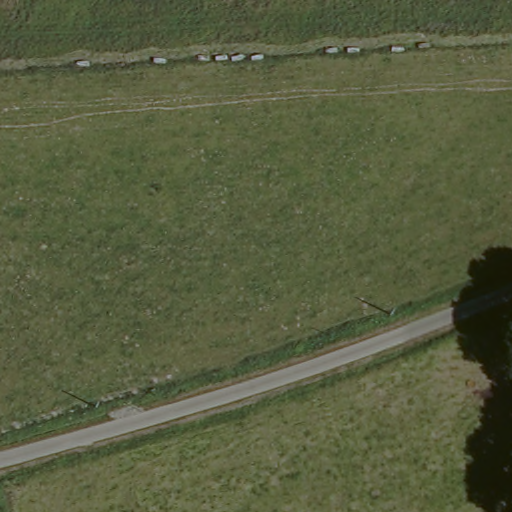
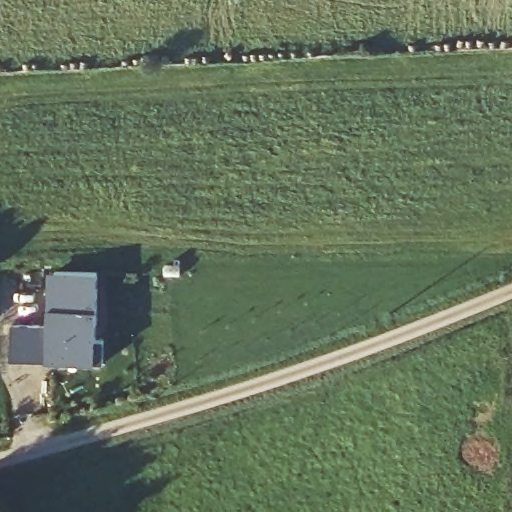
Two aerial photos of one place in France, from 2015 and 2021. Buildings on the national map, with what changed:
new [(50,293),(50,275),(56,275),(99,275),(98,342),(106,342),(105,365),(49,365),(49,362),(13,362),(14,328),(50,329),(50,313),(50,293)]

